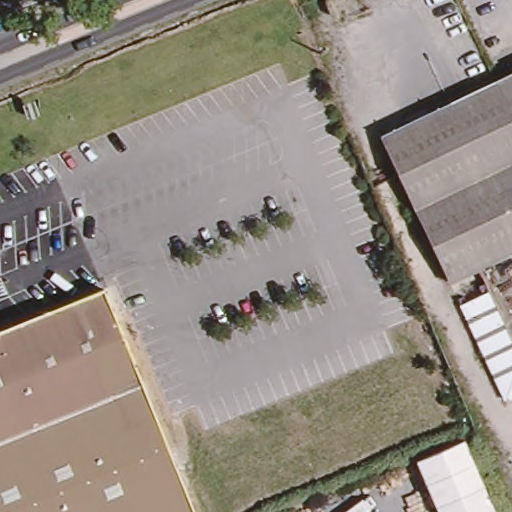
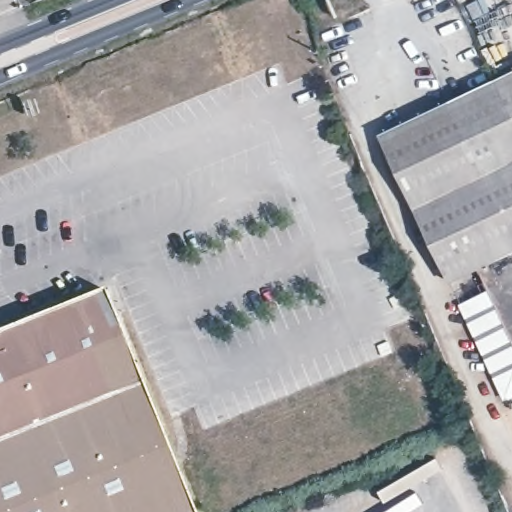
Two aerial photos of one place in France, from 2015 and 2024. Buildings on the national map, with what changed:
unchanged [(493,292),(483,270),(453,283),(418,209),(384,137),(495,85),(512,76),(512,333),(493,292)]
unchanged [(103,290),(113,317),(137,375),(161,433),(185,492),(193,512),(0,512),(0,331),(1,331),(103,290)]
unchanged [(503,402),(458,305),(492,291),(493,292),(512,333),(512,398),(503,402)]
demolished [(418,462),(462,441),(484,488),(436,507),(418,462)]

